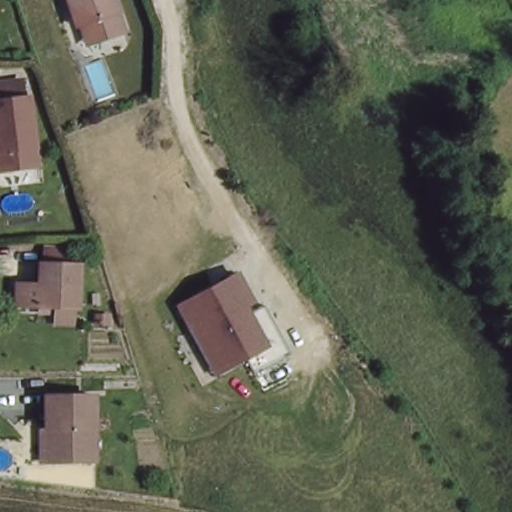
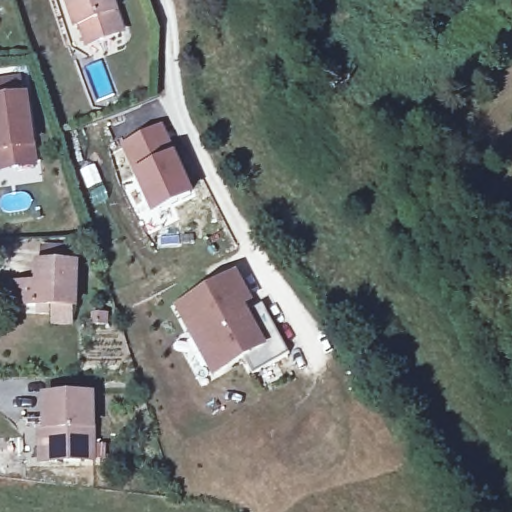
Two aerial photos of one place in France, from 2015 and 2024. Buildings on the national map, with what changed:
unchanged [(83,25),(79,27),(69,0),(114,0),(118,10),(126,28),(103,38),(92,43),(83,25)]
unchanged [(26,100),(37,166),(14,172),(11,155),(0,155),(0,85),(17,83),(21,101),(26,100)]
new [(158,124),(173,162),(184,191),(148,205),(121,139),(149,127),(158,124)]
unchanged [(56,333),(57,317),(15,316),(15,293),(37,295),(36,273),(41,273),(42,260),(65,261),(64,274),(74,275),(75,317),(71,317),(70,332),(56,333)]
unchanged [(253,298),(246,303),(250,313),(265,306),(289,353),(257,372),(248,353),(213,372),(173,302),(239,272),(253,298)]
unchanged [(41,396),(89,394),(90,461),(43,463),(41,396)]

